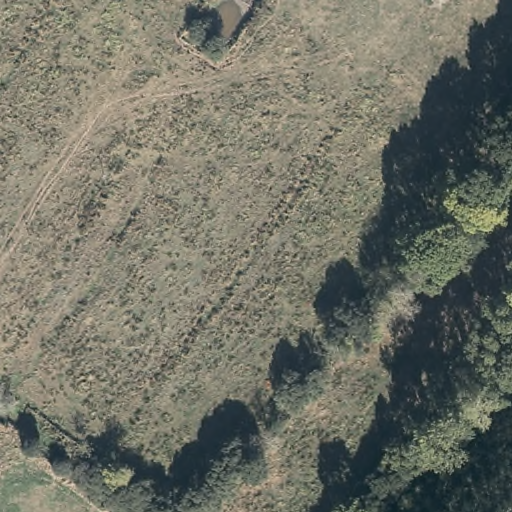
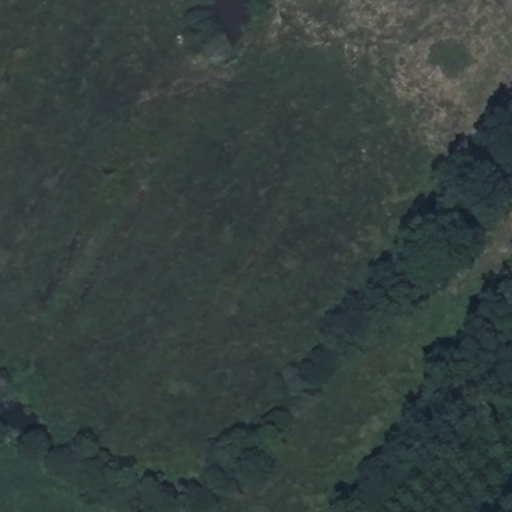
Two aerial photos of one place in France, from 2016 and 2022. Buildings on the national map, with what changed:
[]

